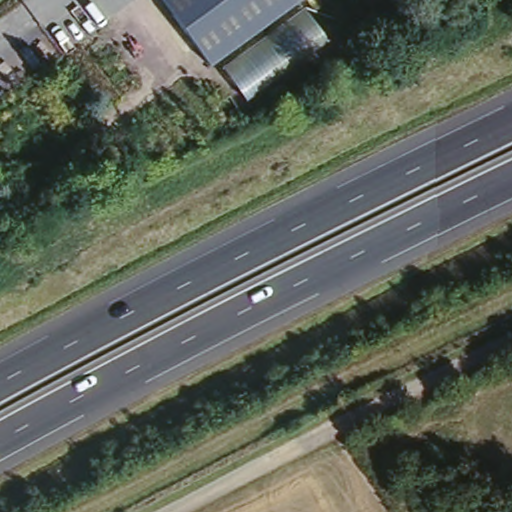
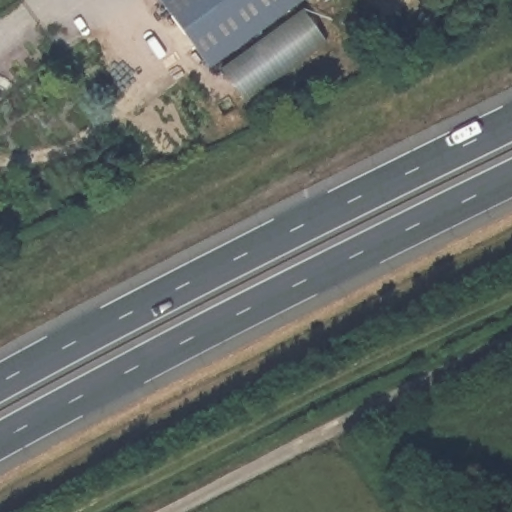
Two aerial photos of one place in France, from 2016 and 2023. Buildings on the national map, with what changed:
unchanged [(211,60),(167,0),(294,0),(211,60)]
unchanged [(332,44),(249,105),(222,68),(304,7),(332,44)]

